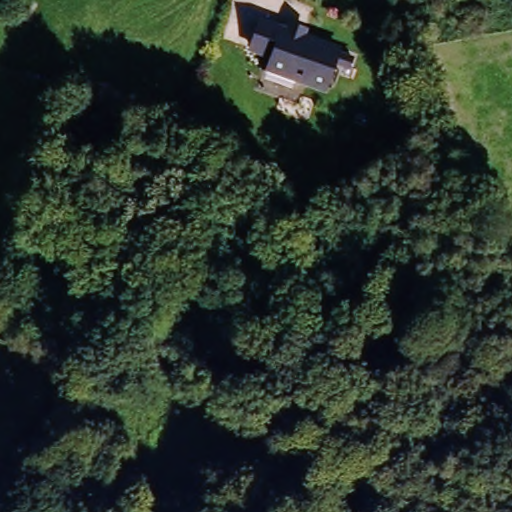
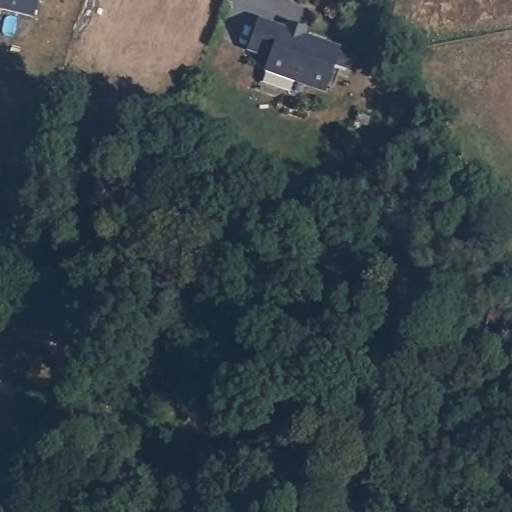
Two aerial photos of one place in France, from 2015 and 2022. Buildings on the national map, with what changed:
unchanged [(281,29),(283,26),(302,32),(302,37),(340,50),(327,91),(265,75),(268,65),(246,55),(255,21),(281,29)]
unchanged [(49,321),(39,352),(0,343),(0,334),(8,313),(49,321)]

